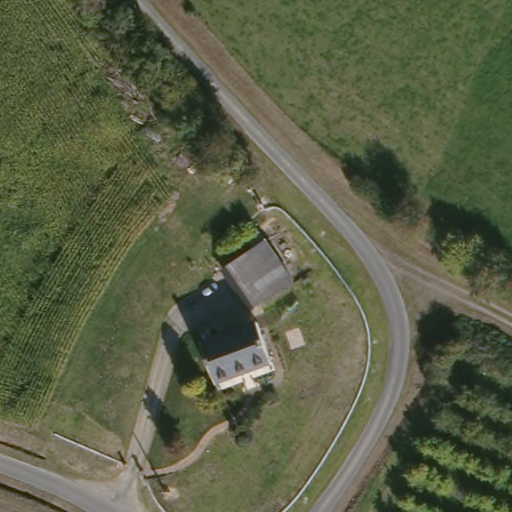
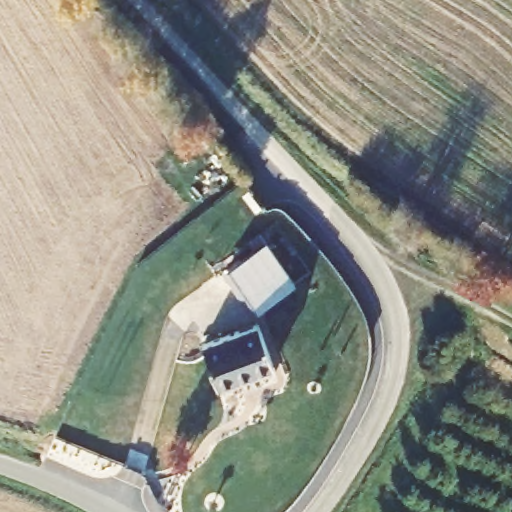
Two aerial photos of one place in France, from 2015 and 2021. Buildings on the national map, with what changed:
unchanged [(259,312),(225,272),(264,240),(298,283),(259,312)]
unchanged [(217,387),(202,350),(254,327),(270,365),(217,387)]

